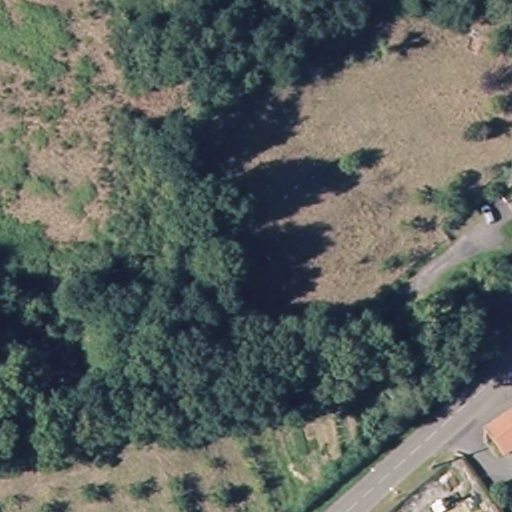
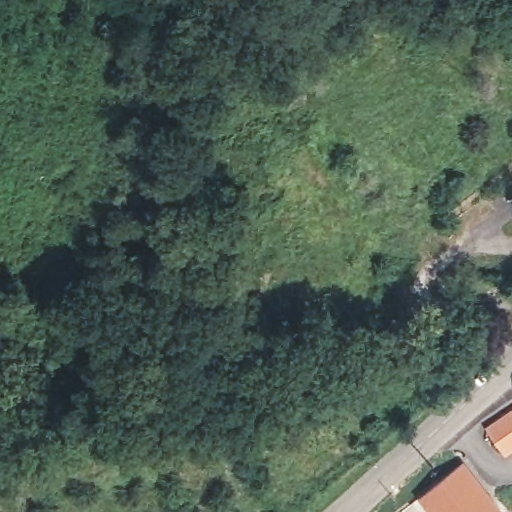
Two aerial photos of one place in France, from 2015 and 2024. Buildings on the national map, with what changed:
unchanged [(504,455),(484,427),(512,409),(512,450),(504,455)]
new [(429,512),(418,498),(464,463),(500,508),(495,512),(429,512)]

